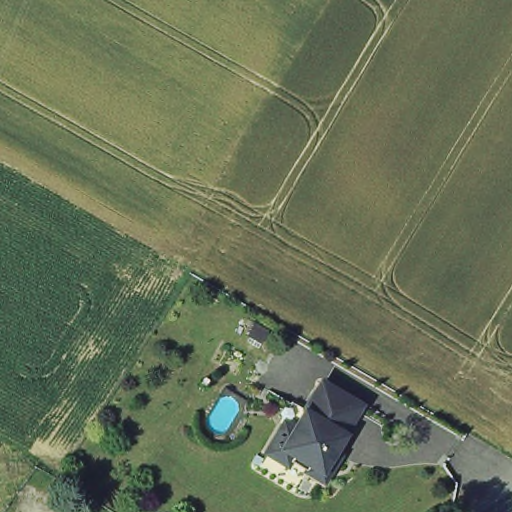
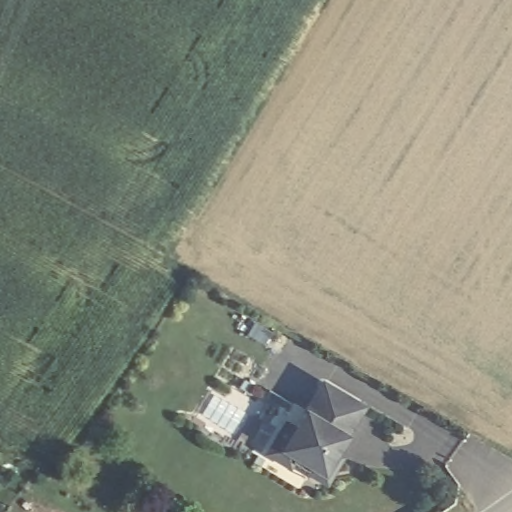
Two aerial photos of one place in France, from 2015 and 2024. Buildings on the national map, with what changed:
unchanged [(322,376),(360,398),(344,426),(306,405),(322,376)]
unchanged [(325,474),(309,464),(292,454),(289,458),(269,446),(285,417),(295,423),(306,405),(344,426),(334,445),(340,449),(325,474)]

